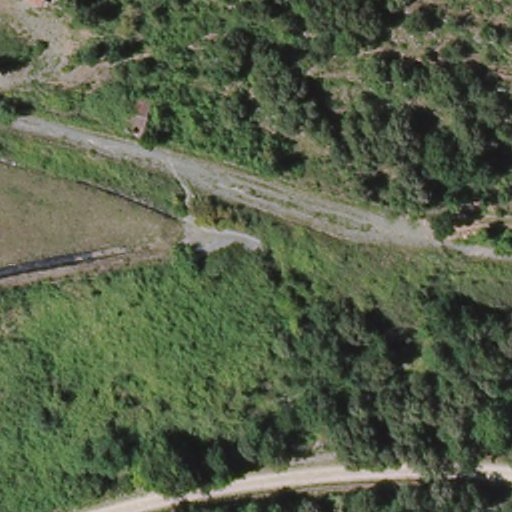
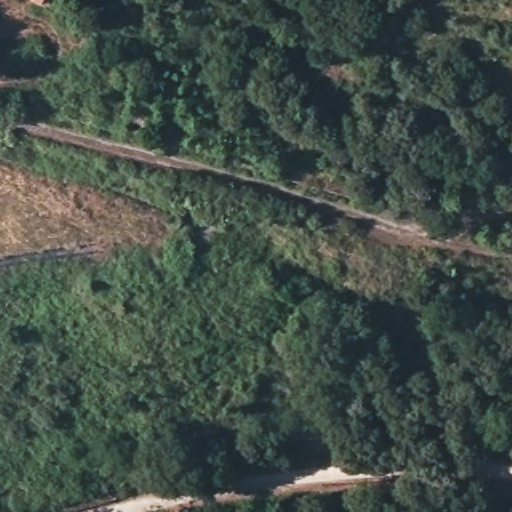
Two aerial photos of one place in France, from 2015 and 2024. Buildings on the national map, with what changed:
unchanged [(62,8),(50,5),(50,0),(64,0),(62,8)]
unchanged [(181,126),(157,117),(167,75),(192,82),(181,126)]

